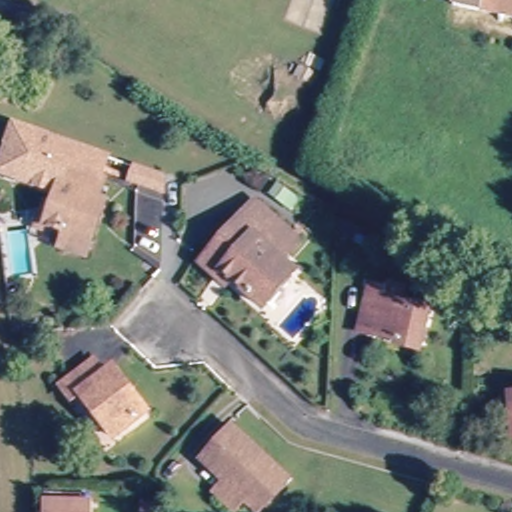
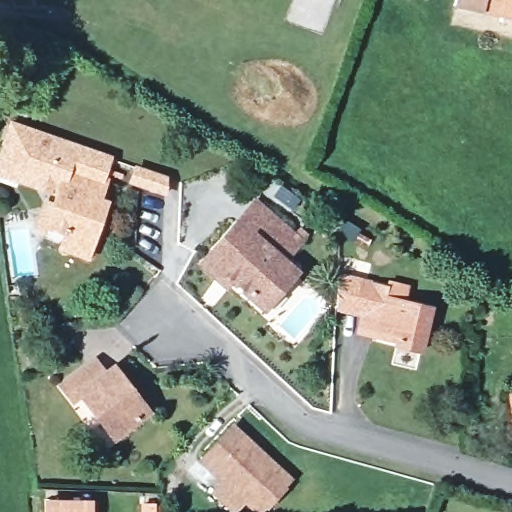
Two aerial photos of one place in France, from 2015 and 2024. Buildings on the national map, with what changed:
unchanged [(477,4),(459,0),(512,0),(512,11),(477,4)]
unchanged [(59,250),(65,235),(44,228),(56,195),(18,180),(23,166),(2,158),(7,144),(6,143),(12,125),(161,181),(162,181),(162,197),(101,175),(99,182),(103,184),(97,201),(104,204),(89,244),(84,259),(59,250)]
unchanged [(300,242),(279,267),(289,277),(263,306),(232,278),(224,285),(202,264),(255,203),(300,242)]
unchanged [(362,319),(369,286),(384,290),(381,299),(428,310),(418,350),(371,339),(358,336),(362,319)]
unchanged [(76,398),(66,385),(94,361),(104,375),(114,369),(145,410),(115,435),(83,394),(76,398)]
unchanged [(510,393),(512,393),(512,421),(510,393)]
unchanged [(250,512),(241,502),(231,512),(230,512),(212,494),(222,482),(202,460),(214,447),(233,428),(254,450),(285,480),(255,512),(250,512)]
unchanged [(83,497),(85,512),(40,512),(39,504),(83,497)]
unchanged [(156,499),(156,512),(141,512),(141,499),(156,499)]

